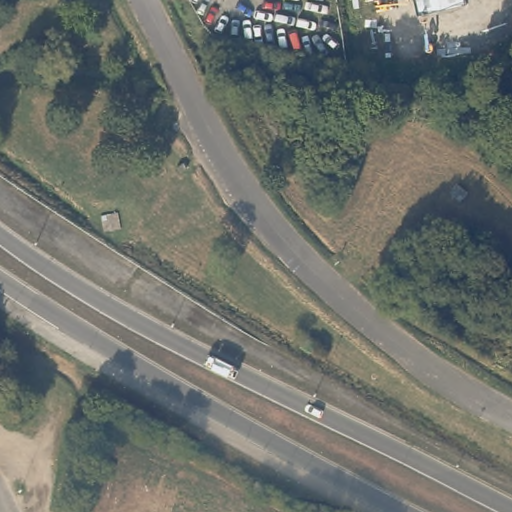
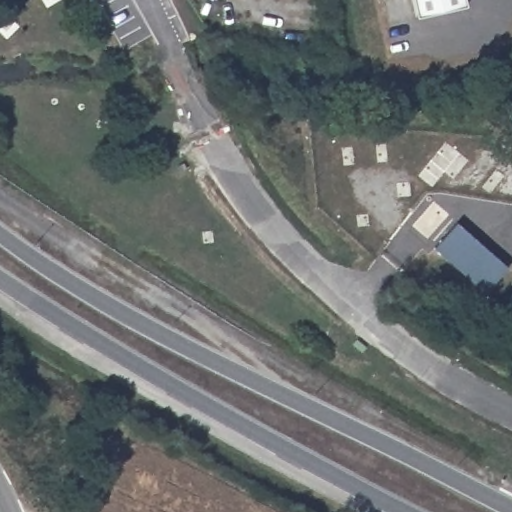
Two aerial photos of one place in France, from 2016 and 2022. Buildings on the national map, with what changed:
unchanged [(416,15),(413,0),(466,0),(467,4),(416,15)]
new [(488,293),(437,247),(459,221),(510,266),(488,293)]

